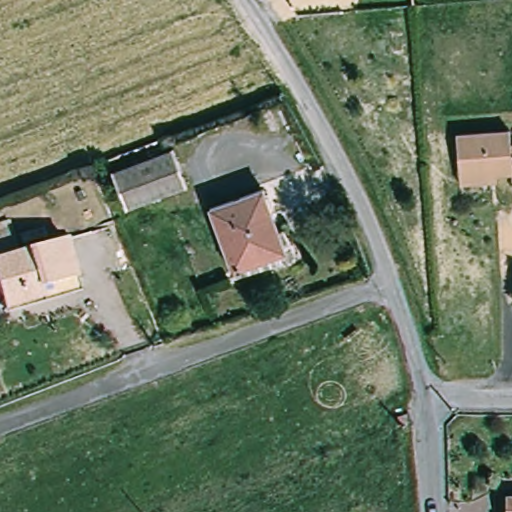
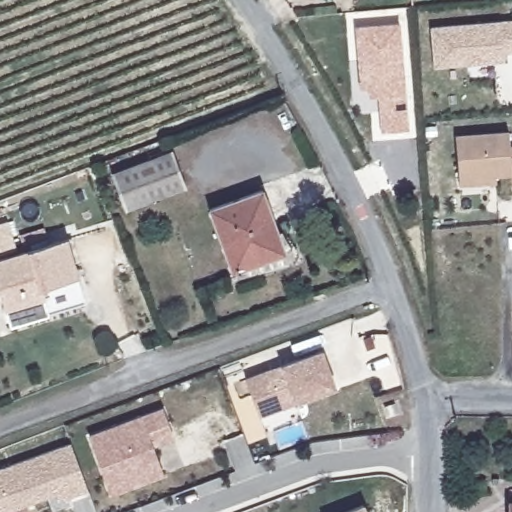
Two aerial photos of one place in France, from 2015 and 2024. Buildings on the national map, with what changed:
new [(433,67),(430,27),(512,20),(512,53),(503,53),(504,61),(494,62),(433,67)]
new [(378,97),(368,97),(367,87),(359,87),(354,25),(400,21),(405,93),(409,130),(381,131),(378,97)]
unchanged [(463,180),(460,135),(512,132),(512,176),(500,177),(501,183),(464,186),(463,180)]
unchanged [(124,210),(111,174),(172,151),(186,186),(124,210)]
unchanged [(214,209),(267,190),(290,253),(237,273),(214,209)]
unchanged [(23,249),(2,255),(0,250),(0,234),(17,229),(23,249)]
unchanged [(49,298),(10,309),(0,275),(0,261),(71,240),(82,278),(85,287),(49,298)]
new [(282,363),(323,347),(337,385),(260,415),(245,377),(272,367),(282,363)]
new [(111,492),(105,476),(89,434),(161,407),(172,435),(152,443),(157,457),(163,473),(111,492)]
unchanged [(404,416),(407,425),(399,428),(396,419),(404,416)]
new [(0,512),(0,467),(70,441),(88,488),(59,499),(56,492),(46,496),(6,512),(0,512)]
unchanged [(512,502),(512,512),(509,512),(509,502),(512,502)]
new [(367,512),(347,512),(364,505),(367,512)]

